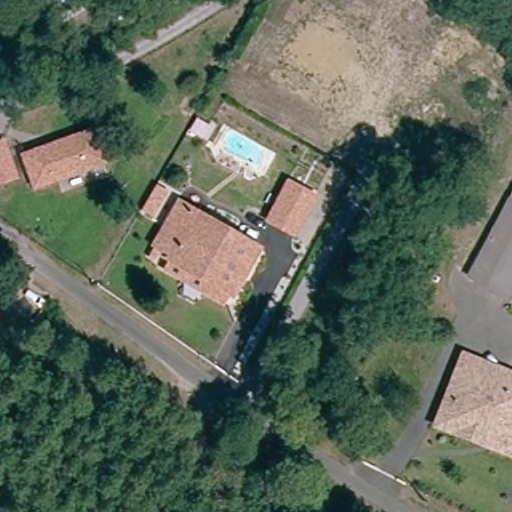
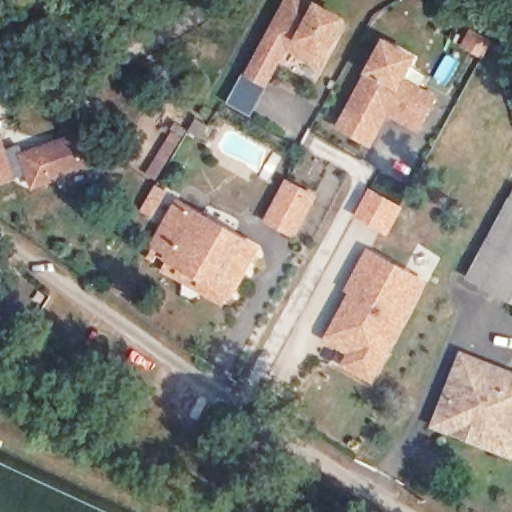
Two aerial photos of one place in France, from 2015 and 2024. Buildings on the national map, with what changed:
new [(269,86),(246,73),(284,0),(315,0),(316,0),(349,19),(327,58),(322,69),(287,51),(269,86)]
demolished [(283,26),(293,10),(301,0),(309,0),(347,21),(355,10),(373,21),(360,55),(326,118),(270,83),(297,34),(283,26)]
new [(386,43),(414,59),(403,80),(435,98),(418,129),(388,112),(381,125),(350,108),(386,43)]
unchanged [(105,163),(32,190),(19,153),(90,129),(105,163)]
unchanged [(0,184),(0,140),(4,138),(17,179),(0,184)]
unchanged [(318,196),(296,238),(263,221),(286,179),(318,196)]
unchanged [(512,203),(512,307),(469,283),(512,203)]
unchanged [(251,257),(222,304),(162,266),(168,258),(154,248),(177,209),(251,257)]
new [(428,280),(373,383),(341,366),(347,353),(323,341),(349,293),(345,291),(367,248),(428,280)]
unchanged [(468,439),(435,425),(459,363),(462,356),(512,376),(512,455),(511,456),(468,439)]

